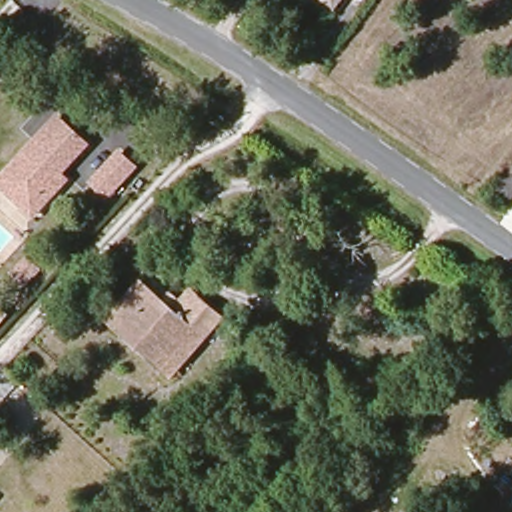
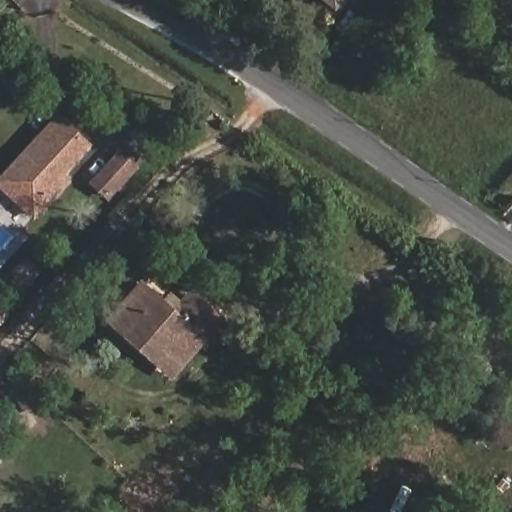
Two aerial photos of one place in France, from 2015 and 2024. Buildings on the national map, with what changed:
unchanged [(337,0),(332,6),(323,0),(337,0)]
unchanged [(63,115),(94,140),(66,172),(44,199),(13,173),(63,115)]
unchanged [(93,184),(118,153),(135,166),(108,198),(93,184)]
unchanged [(44,199),(66,172),(73,177),(40,217),(3,184),(13,173),(44,199)]
unchanged [(14,280),(27,263),(40,274),(26,290),(14,280)]
unchanged [(109,325),(141,288),(184,320),(202,301),(224,319),(189,362),(175,349),(160,367),(109,325)]

